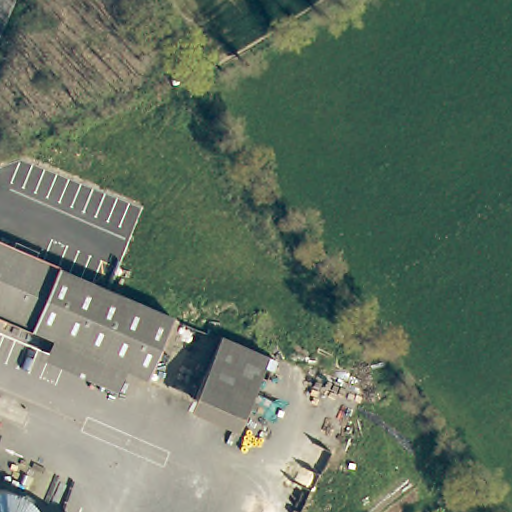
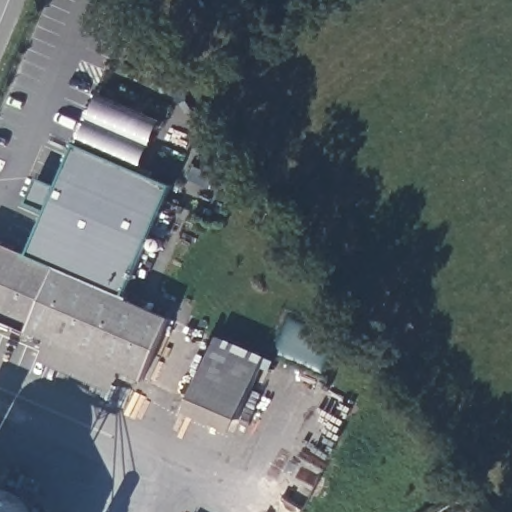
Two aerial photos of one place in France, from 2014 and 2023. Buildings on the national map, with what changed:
new [(148,38),(203,121),(197,125),(142,42),(148,38)]
new [(102,94),(163,121),(141,171),(81,144),(102,94)]
new [(39,176),(60,185),(78,143),(81,144),(141,171),(175,186),(127,294),(30,253),(48,212),(27,203),(39,176)]
unchanged [(175,319),(150,378),(128,368),(120,388),(47,357),(55,338),(34,329),(33,331),(10,322),(7,328),(0,326),(0,246),(175,319)]
unchanged [(192,403),(219,343),(265,362),(239,423),(192,403)]
unchanged [(0,427),(0,414),(5,416),(0,427)]
unchanged [(8,489),(20,496),(30,507),(31,512),(0,512),(0,488),(8,489)]

